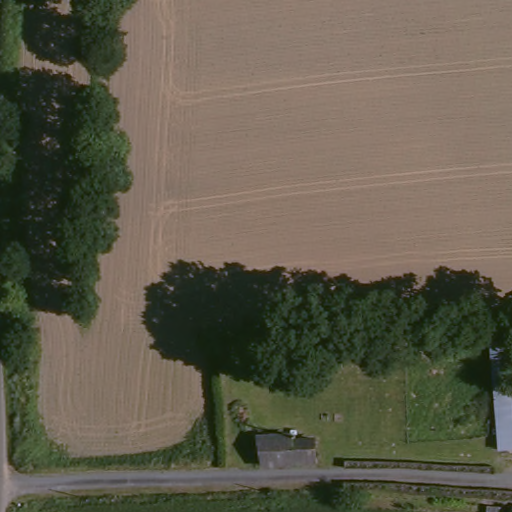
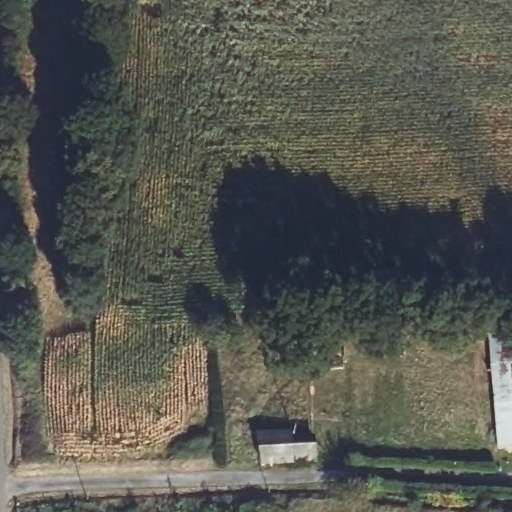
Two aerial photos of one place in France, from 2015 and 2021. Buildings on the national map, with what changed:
unchanged [(287,436),(288,443),(313,443),(314,466),(260,469),(260,437),(287,436)]

